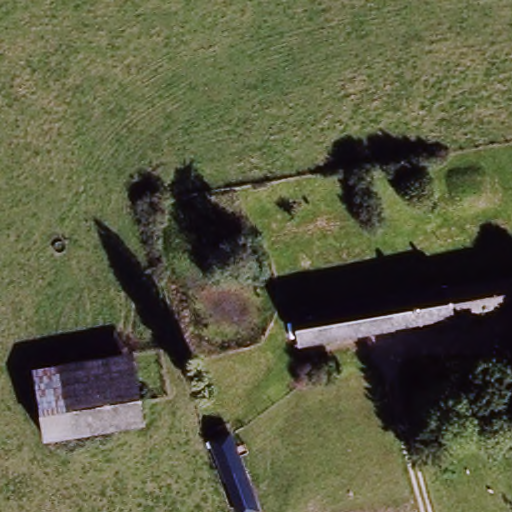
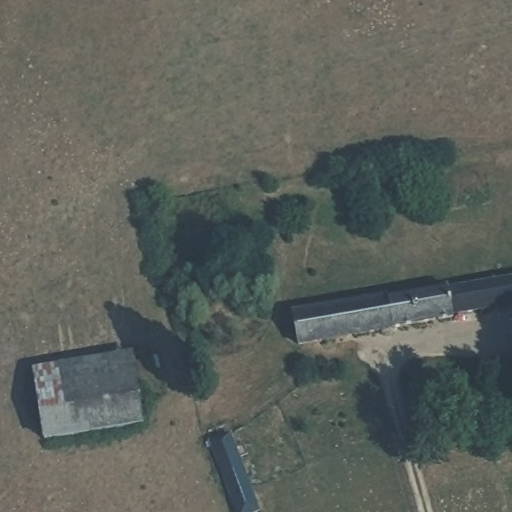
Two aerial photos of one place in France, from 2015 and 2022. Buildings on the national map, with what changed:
unchanged [(347,300),(355,288),(415,279),(417,290),(512,274),(512,312),(298,346),(292,309),(347,300)]
unchanged [(29,363),(132,350),(143,425),(41,441),(29,363)]
unchanged [(205,438),(227,431),(258,511),(256,512),(230,512),(205,438)]

